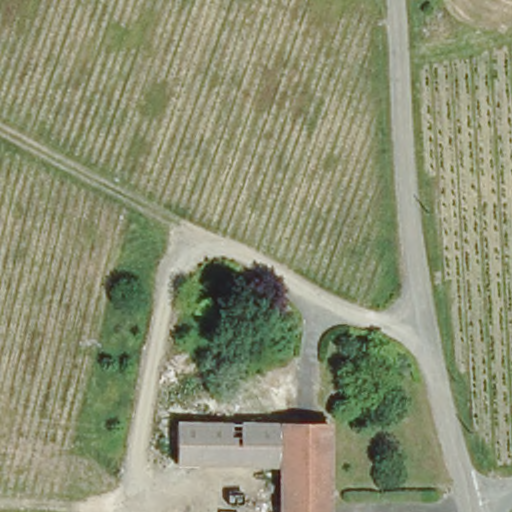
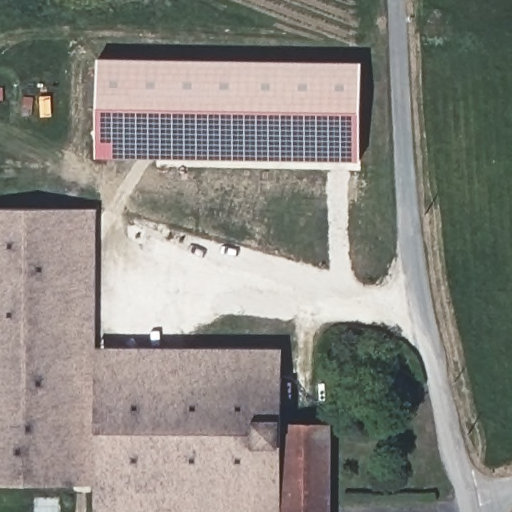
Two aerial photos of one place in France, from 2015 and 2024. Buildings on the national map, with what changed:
new [(96,157),(98,57),(362,62),(360,161),(96,157)]
new [(0,484),(0,207),(98,208),(98,345),(283,347),(279,422),(320,422),(320,506),(320,512),(96,512),(95,483),(0,484)]
demolished [(328,512),(274,512),(273,467),(174,465),(172,423),(328,423),(328,512)]

